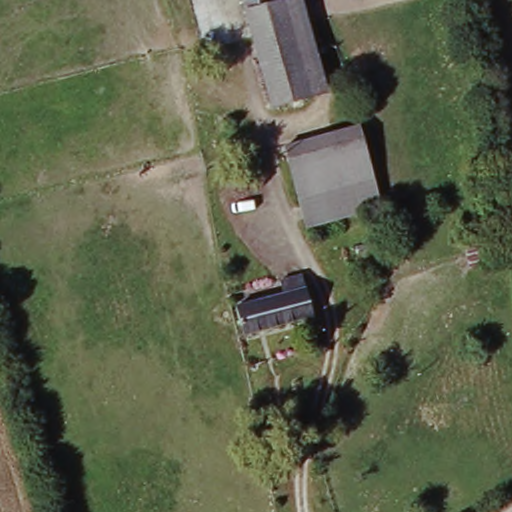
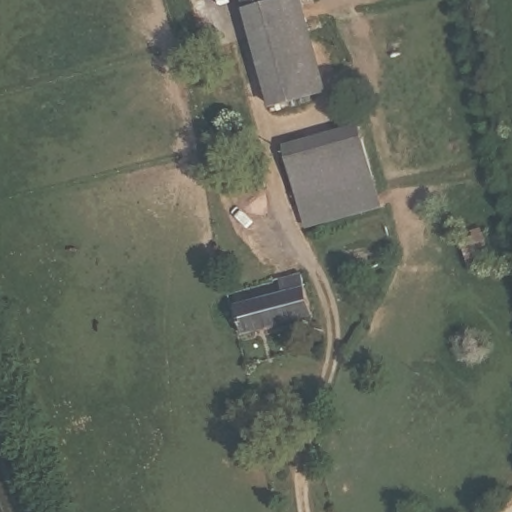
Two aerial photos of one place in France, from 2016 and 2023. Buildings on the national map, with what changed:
unchanged [(279,0),(244,10),(242,0),(279,0)]
unchanged [(304,0),(314,34),(330,92),(270,108),(244,10),(279,0),(304,0)]
unchanged [(284,150),(359,130),(374,178),(383,208),(307,229),(299,199),(284,150)]
unchanged [(485,232),(494,265),(471,270),(463,237),(485,232)]
unchanged [(306,280),(317,317),(243,337),(235,308),(285,296),(284,285),(306,280)]

